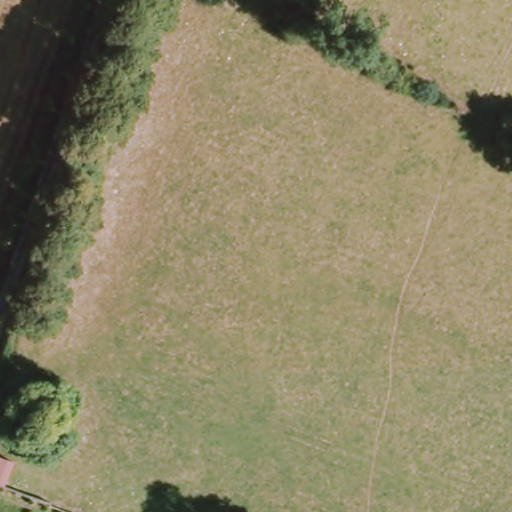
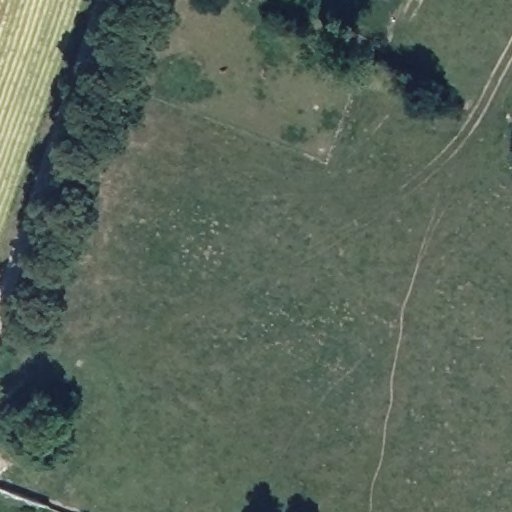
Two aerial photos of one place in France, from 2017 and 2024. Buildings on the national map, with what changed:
unchanged [(11,462),(2,486),(0,485),(0,457),(11,462)]

